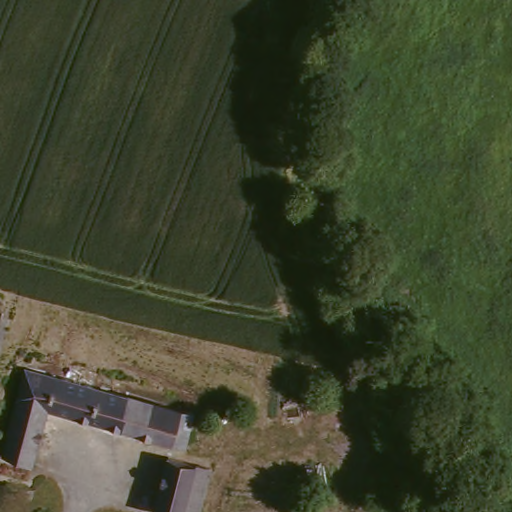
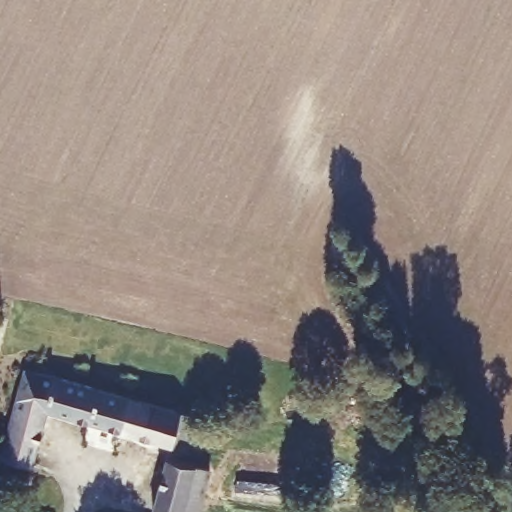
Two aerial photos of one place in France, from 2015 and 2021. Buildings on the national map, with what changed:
unchanged [(183,447),(46,413),(32,464),(0,457),(23,369),(192,413),(183,447)]
unchanged [(198,512),(166,512),(153,509),(165,459),(208,470),(198,512)]

